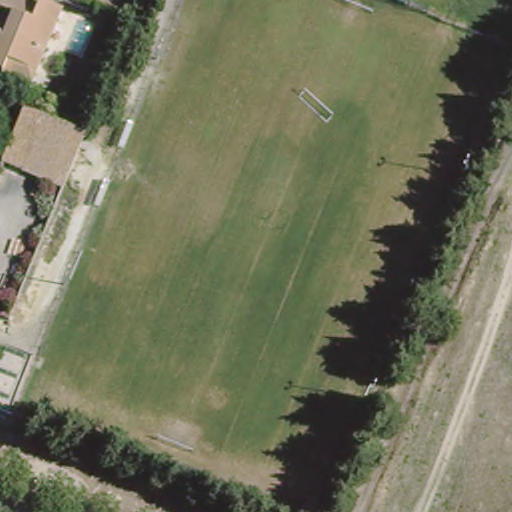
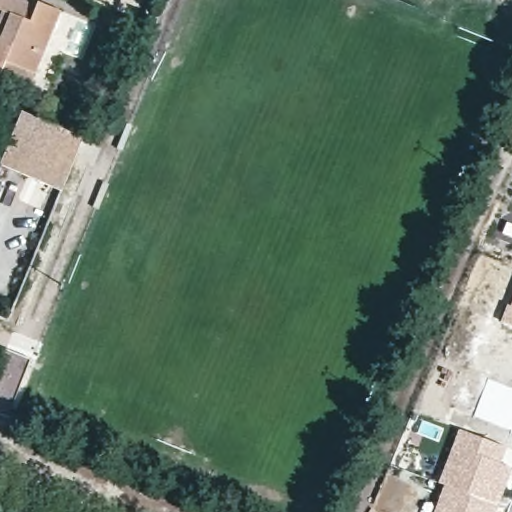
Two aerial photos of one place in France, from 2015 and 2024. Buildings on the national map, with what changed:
unchanged [(0,68),(2,64),(0,64),(0,0),(34,0),(37,1),(37,0),(51,0),(57,2),(35,66),(29,81),(0,70),(0,68)]
unchanged [(81,136),(60,188),(0,165),(0,152),(17,111),(81,136)]
new [(502,322),(508,303),(512,304),(512,326),(502,322)]
unchanged [(29,357),(5,414),(3,420),(0,419),(0,369),(9,348),(29,357)]
new [(487,377),(512,387),(512,431),(472,416),(487,377)]
new [(442,484),(437,482),(458,427),(507,446),(501,462),(512,467),(512,468),(496,512),(433,512),(442,484)]

